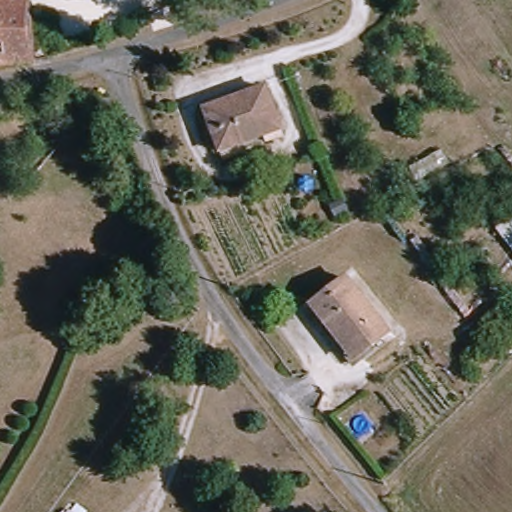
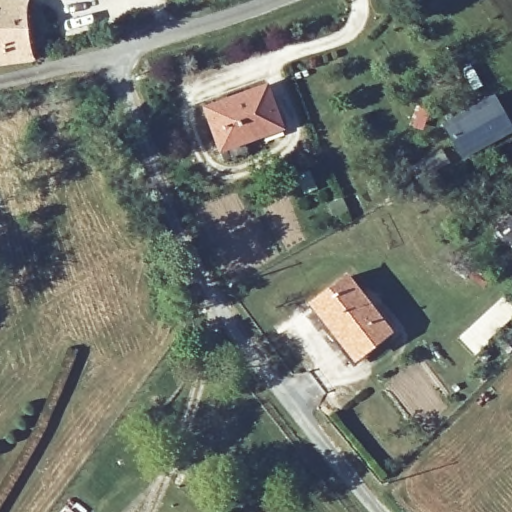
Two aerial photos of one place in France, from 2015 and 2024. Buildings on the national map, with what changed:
unchanged [(32,61),(0,65),(0,0),(22,0),(27,0),(32,61)]
unchanged [(248,148),(219,157),(202,106),(267,84),(282,125),(245,138),(248,148)]
new [(494,94),(512,128),(512,133),(462,159),(441,121),(494,94)]
new [(495,225),(511,213),(512,215),(512,248),(495,225)]
unchanged [(347,277),(389,332),(353,359),(312,304),(347,277)]

